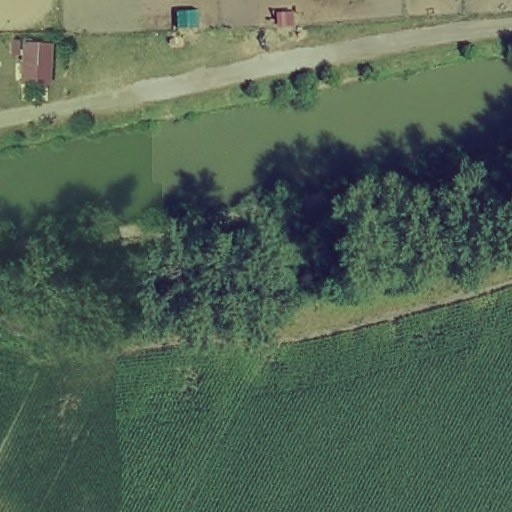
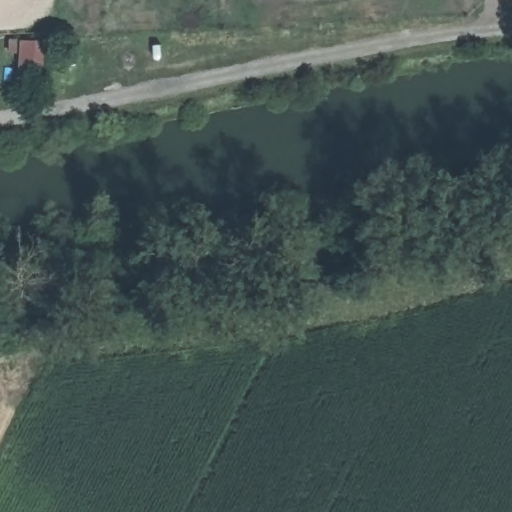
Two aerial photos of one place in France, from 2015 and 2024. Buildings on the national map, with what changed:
unchanged [(50,83),(20,82),(21,55),(9,54),(10,39),(53,40),(50,83)]

